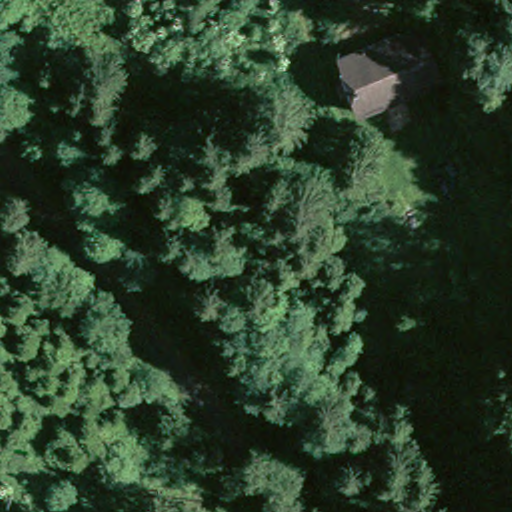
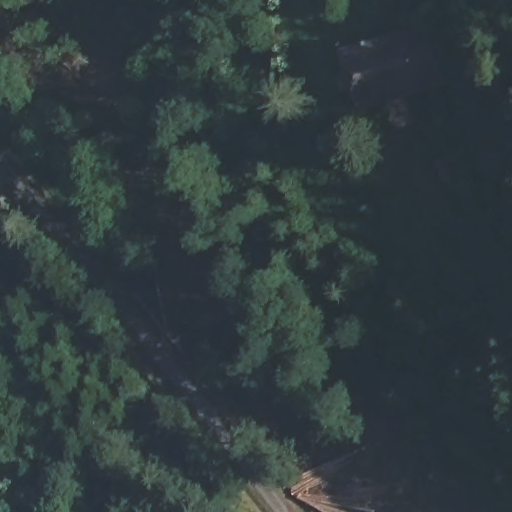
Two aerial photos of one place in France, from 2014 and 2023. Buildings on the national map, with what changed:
unchanged [(355,85),(340,90),(336,77),(350,71),(345,57),(424,30),(441,78),(440,81),(365,109),(355,85)]

